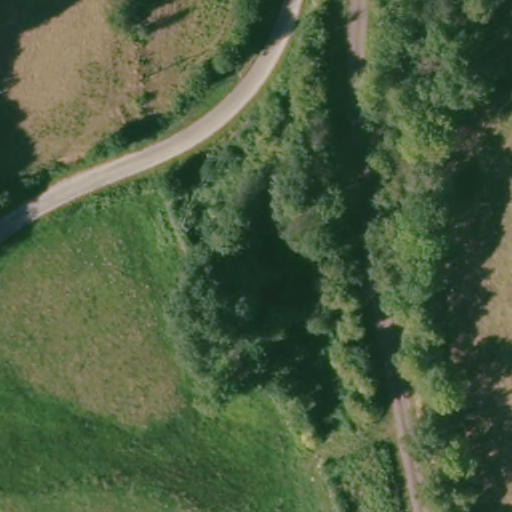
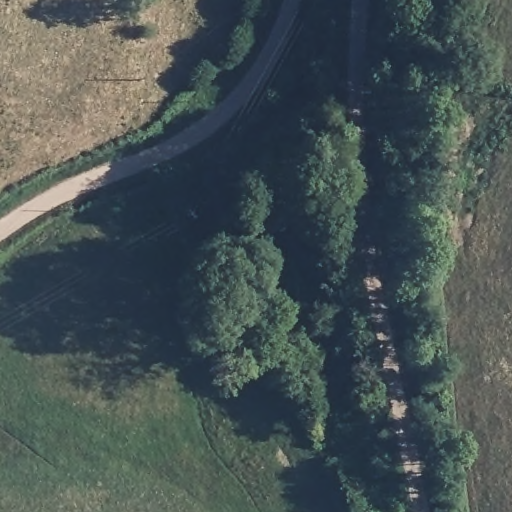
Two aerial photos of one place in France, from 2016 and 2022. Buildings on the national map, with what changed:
unchanged [(302,209),(305,225),(287,230),(285,213),(302,209)]

